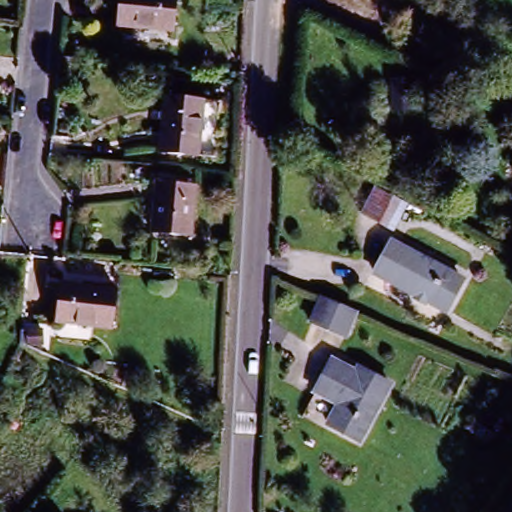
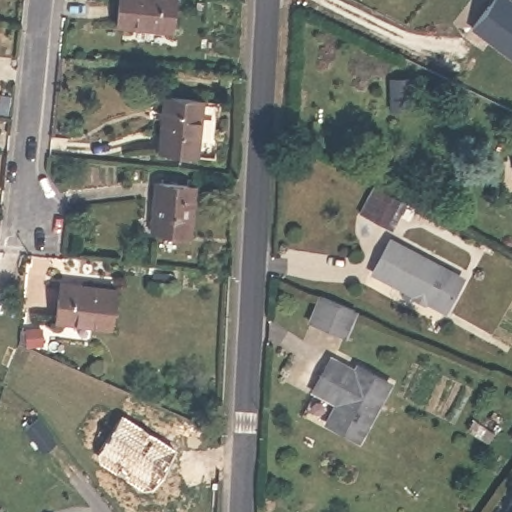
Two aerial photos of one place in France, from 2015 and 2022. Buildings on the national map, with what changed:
unchanged [(118,0),(168,0),(166,27),(116,23),(118,0)]
new [(490,0),(509,0),(512,2),(512,58),(472,26),(490,0)]
new [(378,72),(400,72),(400,93),(400,103),(378,103),(378,94),(378,72)]
unchanged [(196,95),(192,150),(156,147),(161,93),(196,95)]
unchanged [(510,162),(512,159),(512,169),(510,162)]
unchanged [(149,187),(186,191),(182,238),(145,235),(149,187)]
unchanged [(381,228),(357,215),(372,189),(395,201),(400,204),(386,231),(381,228)]
unchanged [(391,239),(463,278),(445,311),(373,272),(391,239)]
unchanged [(54,322),(57,284),(108,288),(105,326),(54,322)]
unchanged [(326,296),(358,312),(344,339),(312,323),(326,296)]
unchanged [(326,367),(352,381),(356,372),(388,389),(355,449),(321,430),(332,409),(311,397),(326,367)]
new [(176,454),(156,493),(141,493),(98,463),(125,419),(176,454)]

